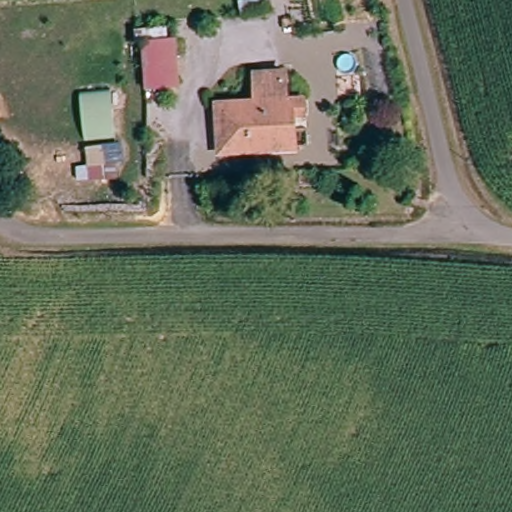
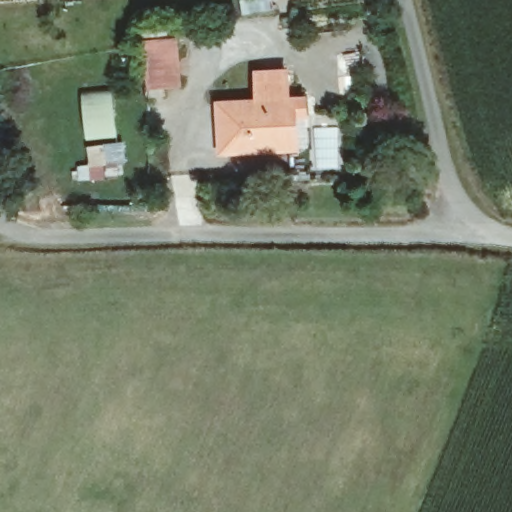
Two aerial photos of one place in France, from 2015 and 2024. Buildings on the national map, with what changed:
unchanged [(185,35),(186,85),(149,86),(150,36),(185,35)]
unchanged [(221,139),(221,99),(255,99),(254,75),(288,75),(290,99),(309,98),(309,120),(292,120),(294,147),(261,147),(221,147),(221,139)]

